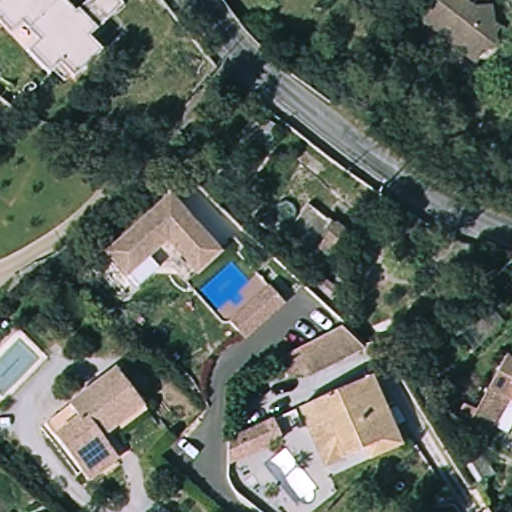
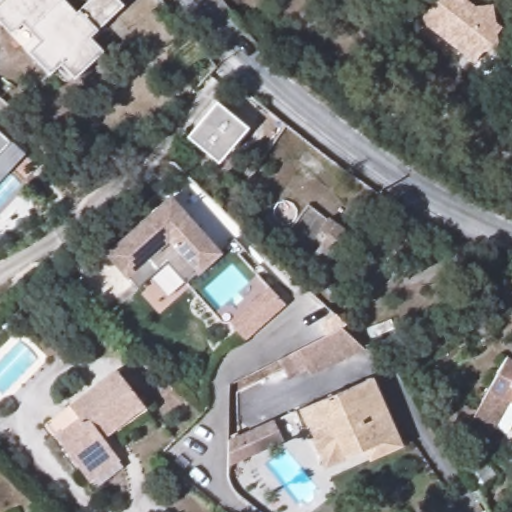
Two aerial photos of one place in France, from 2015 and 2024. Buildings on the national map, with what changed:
unchanged [(40,40),(45,35),(25,14),(8,29),(0,20),(0,0),(67,0),(78,12),(90,0),(120,0),(125,5),(91,36),(105,50),(95,59),(75,78),(61,63),(49,74),(28,50),(40,40)]
unchanged [(439,0),(470,0),(469,2),(477,10),(496,7),(497,23),(505,30),(499,37),(501,54),(487,55),(476,67),(422,23),(439,0)]
new [(218,166),(186,138),(215,103),(248,130),(218,166)]
new [(0,132),(8,141),(24,155),(0,181),(0,132)]
unchanged [(175,187),(228,246),(201,270),(171,236),(131,272),(109,247),(175,187)]
unchanged [(351,221),(366,232),(337,267),(324,257),(351,221)]
unchanged [(231,323),(269,290),(285,308),(247,342),(231,323)]
unchanged [(286,355),(341,326),(361,343),(310,373),(306,367),(295,372),(286,355)]
unchanged [(506,356),(512,359),(512,403),(510,402),(485,445),(464,433),(490,387),(506,356)]
unchanged [(91,474),(84,465),(50,417),(121,366),(151,407),(110,437),(113,442),(121,455),(91,474)]
unchanged [(374,382),(401,444),(371,457),(367,450),(326,466),(301,410),(374,382)]
unchanged [(226,470),(241,436),(264,428),(273,457),(251,464),(229,472),(226,470)]

